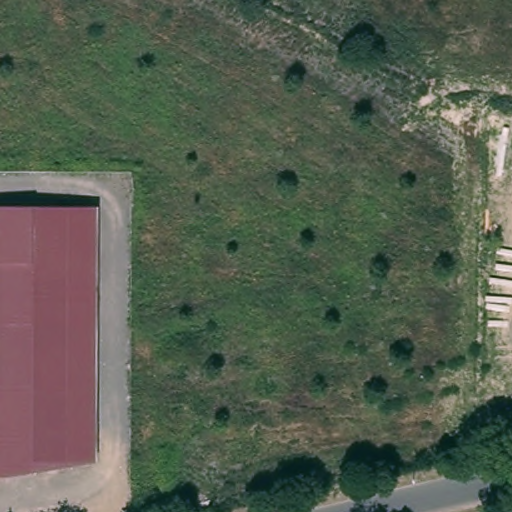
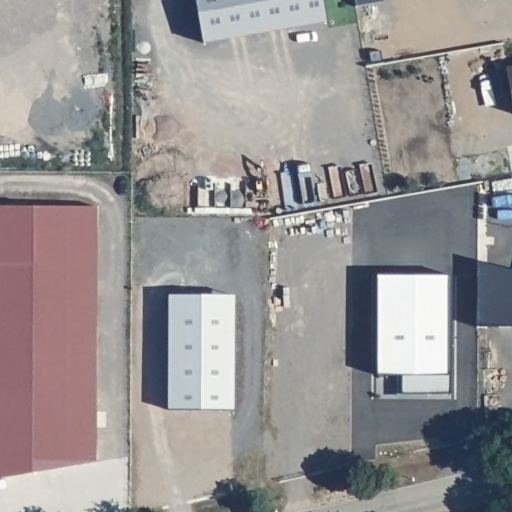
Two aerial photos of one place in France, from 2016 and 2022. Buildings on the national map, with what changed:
new [(326,20),(202,41),(195,0),(323,0),(326,20)]
new [(512,65),(512,101),(506,67),(512,65)]
unchanged [(96,461),(0,479),(0,205),(98,205),(96,461)]
new [(477,261),(512,269),(512,326),(476,326),(477,261)]
new [(376,274),(452,274),(451,393),(401,393),(401,374),(376,374),(376,274)]
new [(169,293),(234,294),(234,309),(169,309),(169,293)]
new [(169,309),(234,309),(233,409),(168,409),(169,309)]

